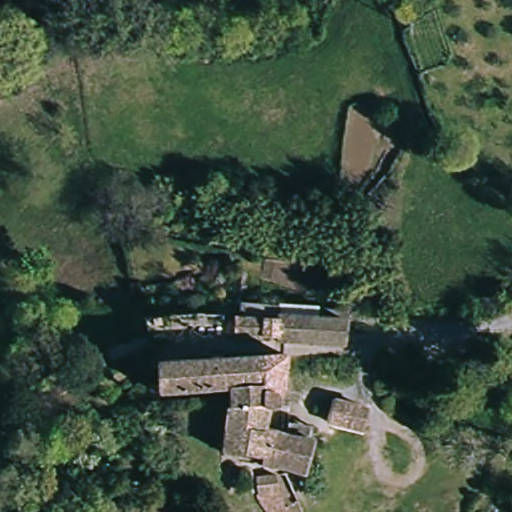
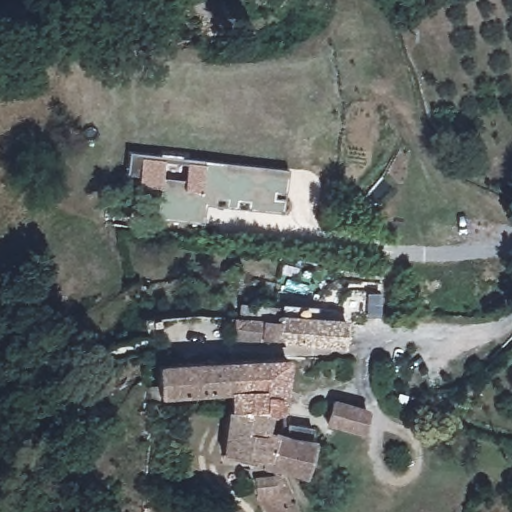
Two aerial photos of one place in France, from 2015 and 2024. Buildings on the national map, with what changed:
new [(132,153),(293,167),(292,172),(190,163),(189,180),(166,178),(167,161),(144,159),(143,177),(130,176),(132,153)]
new [(210,225),(161,220),(164,187),(142,186),(143,177),(144,159),(167,161),(166,178),(189,180),(190,163),(292,172),(289,212),(230,207),(211,206),(210,225)]
unchanged [(343,350),(286,345),(277,343),(277,336),(263,335),(262,340),(242,334),(247,311),(268,319),(271,315),(279,316),(347,320),(343,350)]
unchanged [(277,405),(261,405),(225,405),(225,391),(226,386),(232,355),(281,352),(281,370),(278,395),(277,405)]
unchanged [(156,388),(154,359),(232,355),(226,386),(156,388)]
unchanged [(329,422),(336,398),(369,410),(360,432),(329,422)]
unchanged [(259,426),(305,437),(297,468),(259,461),(259,454),(219,447),(222,405),(225,405),(261,405),(259,426)]
unchanged [(252,472),(270,472),(281,512),(265,512),(262,501),(257,501),(252,472)]
unchanged [(486,512),(483,512),(486,511),(486,512)]

